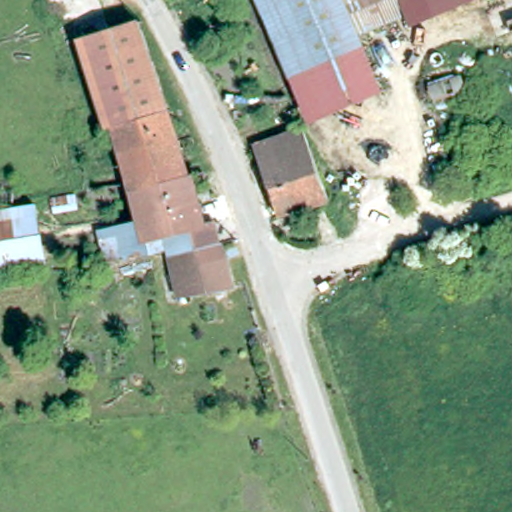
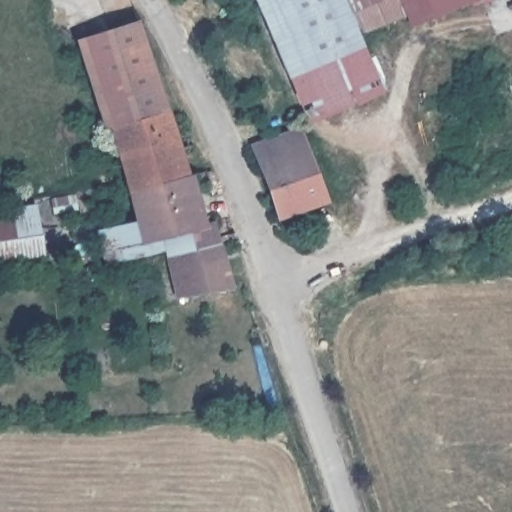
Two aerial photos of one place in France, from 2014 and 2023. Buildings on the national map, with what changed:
unchanged [(387,94),(317,126),(262,0),(346,0),(362,38),(387,94)]
unchanged [(408,17),(362,38),(346,0),(401,0),(408,17)]
unchanged [(439,19),(431,0),(484,0),(439,19)]
unchanged [(120,142),(115,128),(110,130),(92,70),(77,37),(132,27),(144,22),(170,107),(191,171),(133,187),(132,182),(120,142)]
unchanged [(327,196),(275,212),(251,140),(300,124),(308,144),(312,153),(327,196)]
unchanged [(133,187),(191,171),(194,170),(201,197),(206,219),(216,217),(222,242),(195,247),(183,250),(175,252),(174,250),(155,252),(152,253),(148,237),(125,244),(122,227),(143,222),(133,187)]
unchanged [(52,209),(52,197),(78,193),(77,203),(52,209)]
unchanged [(20,267),(0,270),(0,202),(37,196),(50,262),(37,265),(20,267)]
unchanged [(231,281),(232,286),(189,295),(175,252),(183,250),(195,247),(222,242),(231,281)]

